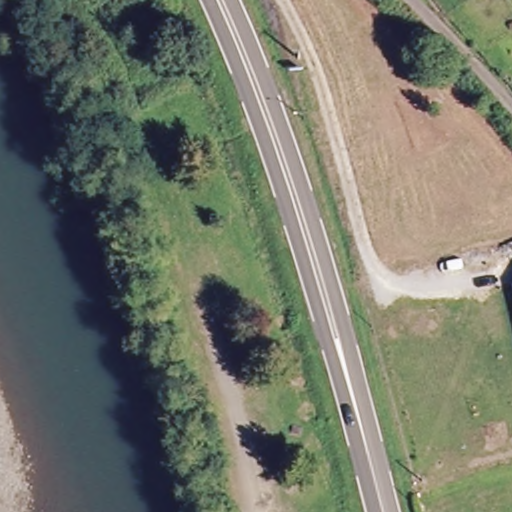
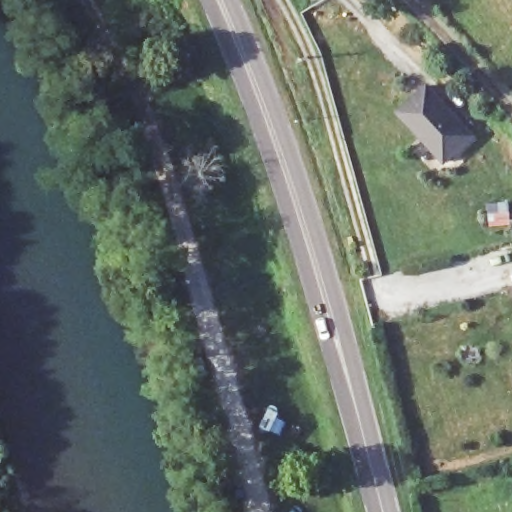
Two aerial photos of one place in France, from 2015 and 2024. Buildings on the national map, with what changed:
new [(426,85),(471,135),(442,162),(396,111),(426,85)]

